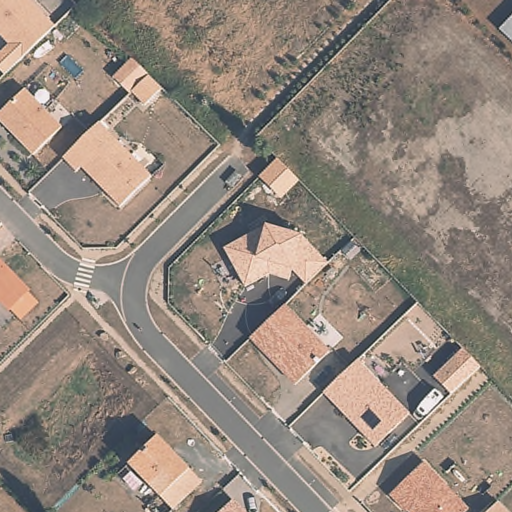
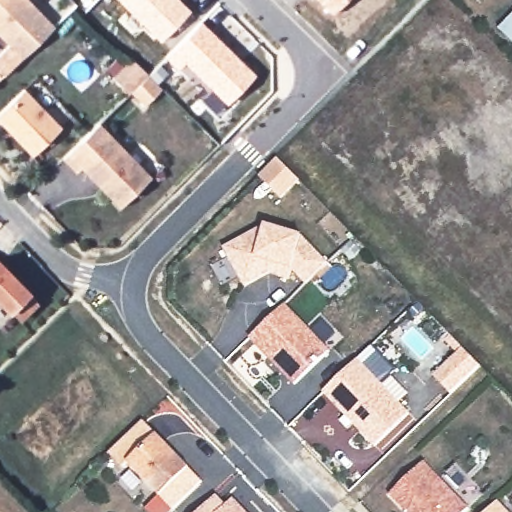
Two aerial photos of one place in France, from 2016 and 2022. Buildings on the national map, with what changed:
unchanged [(4,77),(0,73),(0,52),(6,45),(0,38),(0,0),(29,0),(55,27),(4,77)]
new [(160,40),(118,0),(180,0),(190,10),(160,40)]
unchanged [(499,31),(512,17),(512,44),(499,31)]
new [(200,21),(254,75),(242,87),(245,90),(217,118),(196,96),(201,92),(165,56),(200,21)]
new [(146,104),(133,90),(131,92),(115,76),(135,57),(151,74),(165,87),(146,104)]
unchanged [(33,157),(0,125),(0,113),(24,89),(61,128),(33,157)]
unchanged [(151,177),(119,210),(80,169),(75,173),(62,159),(99,124),(151,177)]
unchanged [(283,200),(257,177),(278,159),(300,180),(283,200)]
unchanged [(303,286),(290,271),(286,280),(267,275),(244,289),(223,249),(269,225),(306,236),(328,263),(303,286)]
unchanged [(21,322),(10,312),(9,314),(0,305),(0,268),(39,305),(21,322)]
unchanged [(296,386),(250,340),(286,306),(330,353),(296,386)]
unchanged [(451,393),(434,375),(462,347),(480,367),(451,393)]
unchanged [(375,448),(322,395),(358,360),(409,415),(375,448)]
unchanged [(201,483),(173,511),(159,499),(128,465),(156,436),(201,483)]
unchanged [(467,512),(405,512),(390,497),(423,464),(469,510),(467,512)]
unchanged [(244,512),(219,512),(232,500),(244,512)]
unchanged [(496,502),(506,512),(486,512),(496,502)]

